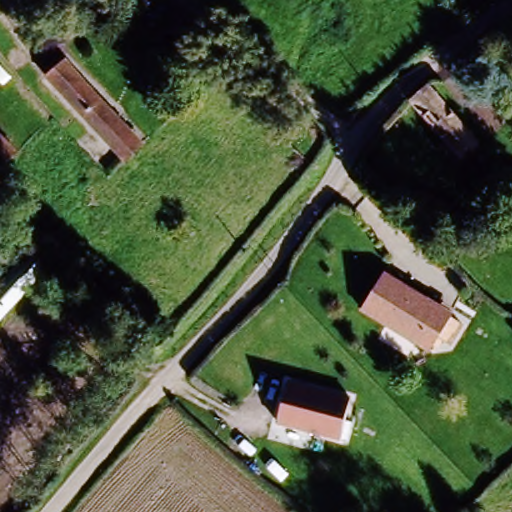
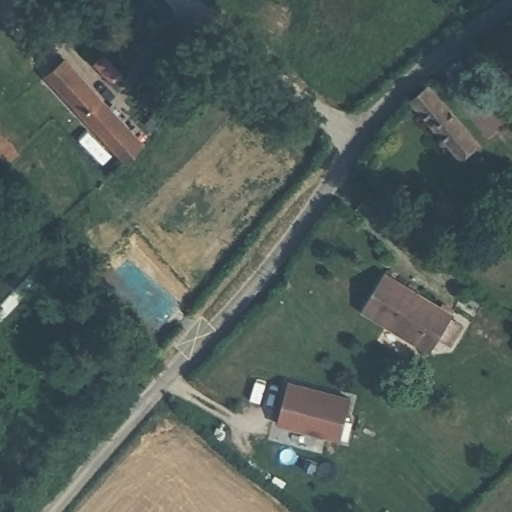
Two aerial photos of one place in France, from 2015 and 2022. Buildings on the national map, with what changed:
unchanged [(202,28),(208,74),(181,80),(175,33),(202,28)]
unchanged [(110,100),(136,124),(130,132),(141,146),(122,162),(46,77),(63,61),(105,105),(110,100)]
unchanged [(458,157),(415,103),(433,86),(478,141),(458,157)]
unchanged [(1,166),(0,168),(0,165),(1,166)]
unchanged [(447,183),(440,189),(430,175),(437,170),(447,183)]
unchanged [(451,187),(460,197),(448,207),(440,197),(451,187)]
unchanged [(0,318),(0,279),(27,251),(45,268),(0,318)]
unchanged [(363,307),(388,268),(456,311),(431,350),(363,307)]
unchanged [(290,381),(352,395),(338,438),(278,422),(290,381)]

